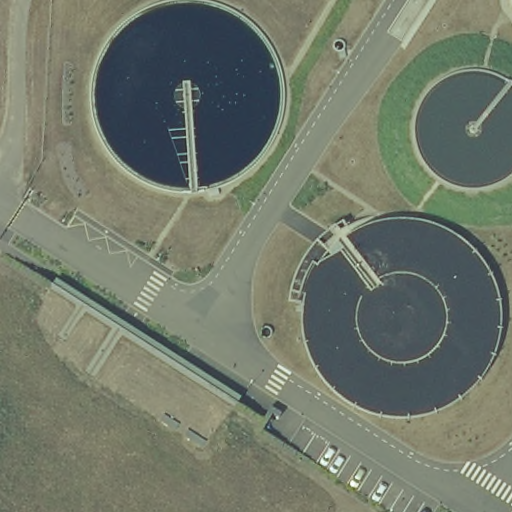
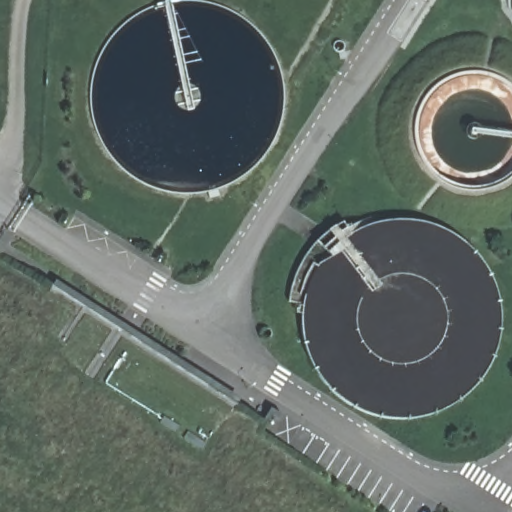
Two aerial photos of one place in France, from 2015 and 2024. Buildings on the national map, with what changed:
unchanged [(215,449),(58,350),(62,343),(31,320),(57,279),(242,396),(215,449)]

